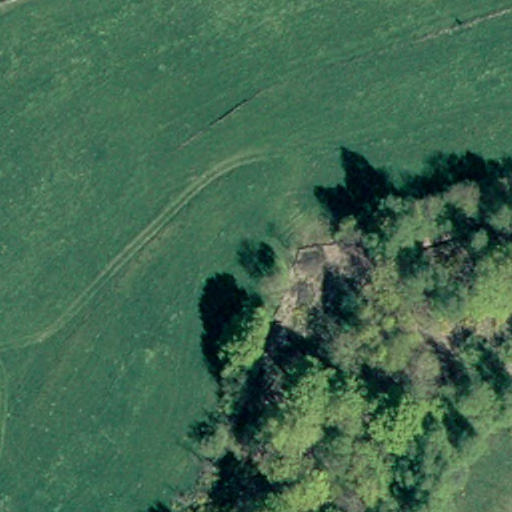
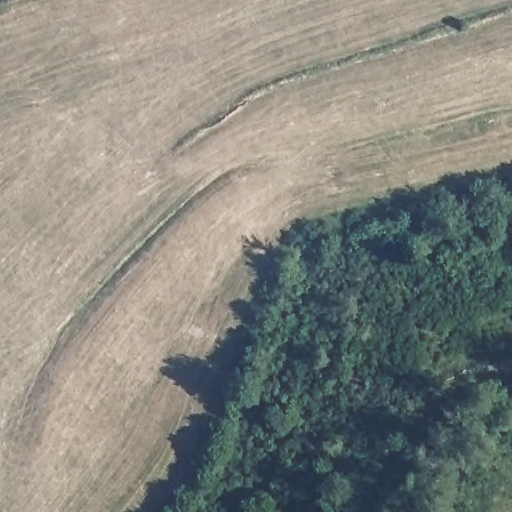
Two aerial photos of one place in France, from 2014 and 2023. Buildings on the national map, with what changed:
[]

